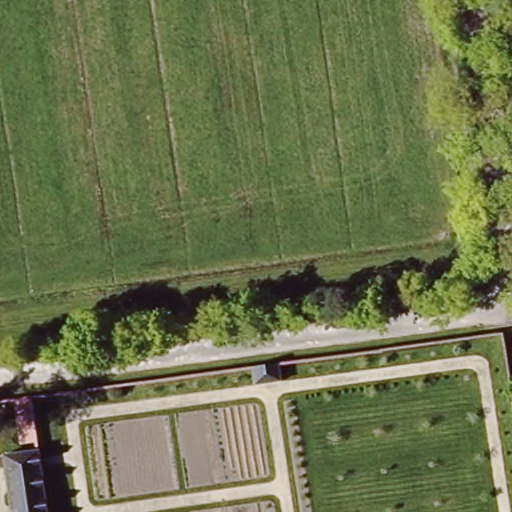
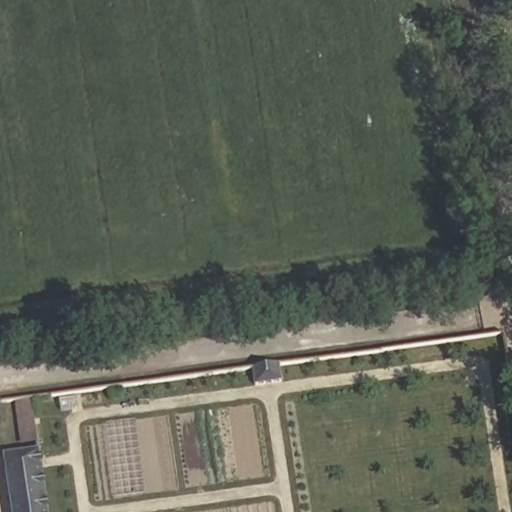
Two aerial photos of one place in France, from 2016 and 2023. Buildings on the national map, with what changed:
unchanged [(279,361),(281,377),(255,380),(254,365),(279,361)]
unchanged [(26,437),(20,395),(38,393),(43,435),(26,437)]
unchanged [(52,512),(11,512),(5,456),(45,452),(52,512)]

